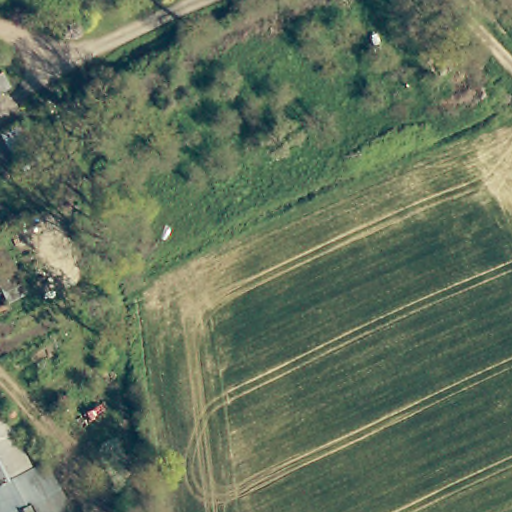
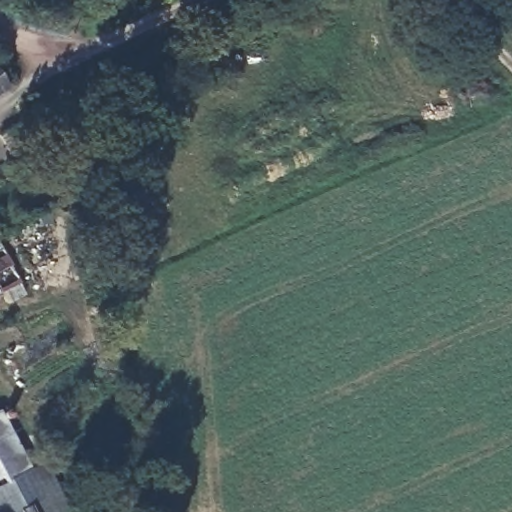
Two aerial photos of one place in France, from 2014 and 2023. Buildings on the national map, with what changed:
unchanged [(0,82),(7,93),(0,98),(0,82)]
unchanged [(74,114),(73,114),(69,113),(66,111),(64,107),(64,103),(66,100),(69,97),(79,98),(83,103),(80,112),(74,114)]
unchanged [(1,135),(21,121),(40,153),(19,165),(1,135)]
unchanged [(0,244),(26,293),(6,303),(0,291),(0,244)]
unchanged [(32,469),(55,512),(0,512),(0,425),(24,473),(32,469)]

